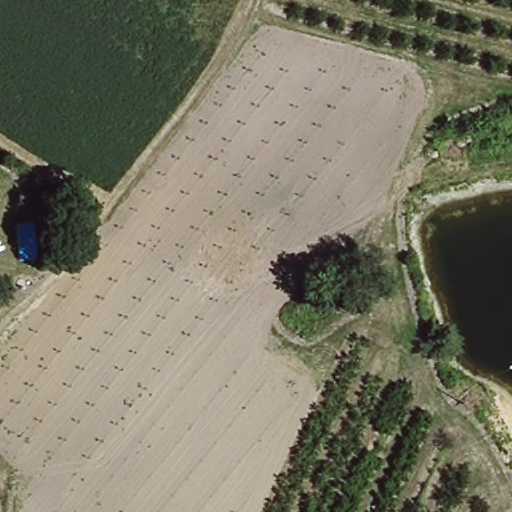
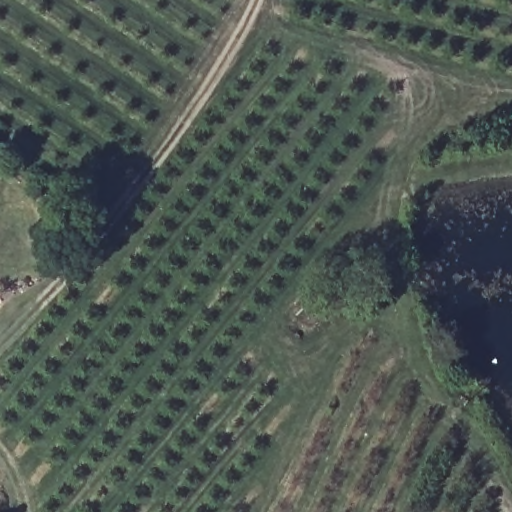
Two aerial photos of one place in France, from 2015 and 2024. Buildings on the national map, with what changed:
[]

